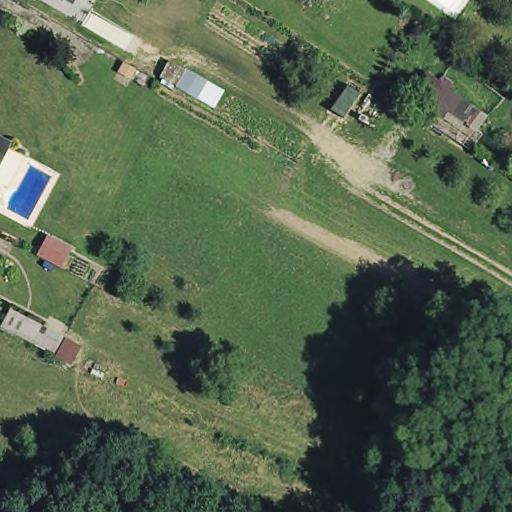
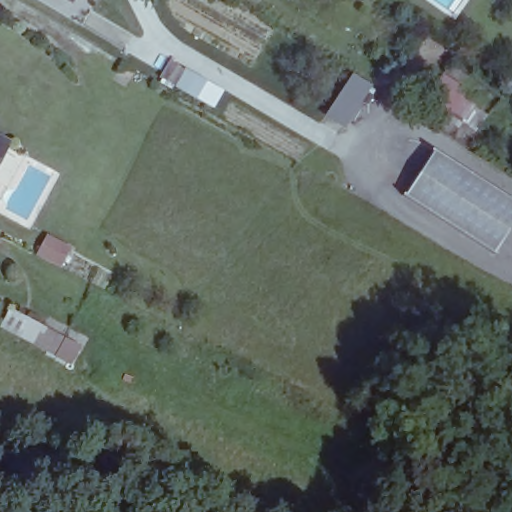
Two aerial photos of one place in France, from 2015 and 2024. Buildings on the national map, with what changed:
unchanged [(70,0),(67,6),(58,0),(70,0)]
unchanged [(222,91),(215,104),(182,83),(188,71),(222,91)]
new [(345,128),(325,115),(352,72),(372,85),(345,128)]
unchanged [(487,118),(477,131),(465,125),(462,130),(411,94),(429,73),(475,106),(487,118)]
unchanged [(0,169),(0,138),(13,145),(0,169)]
new [(492,253),(404,196),(433,151),(512,202),(512,221),(492,253)]
unchanged [(4,329),(12,312),(67,340),(57,360),(4,329)]

